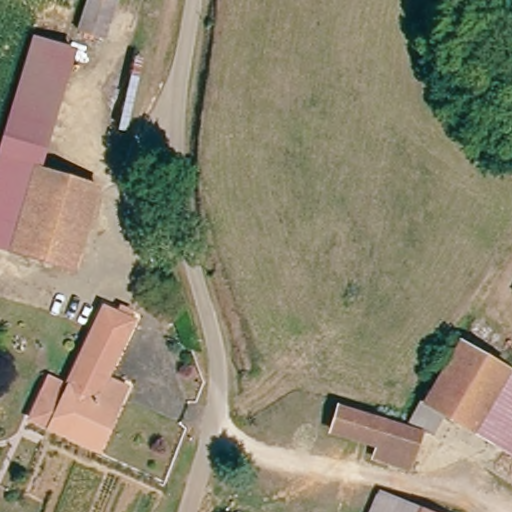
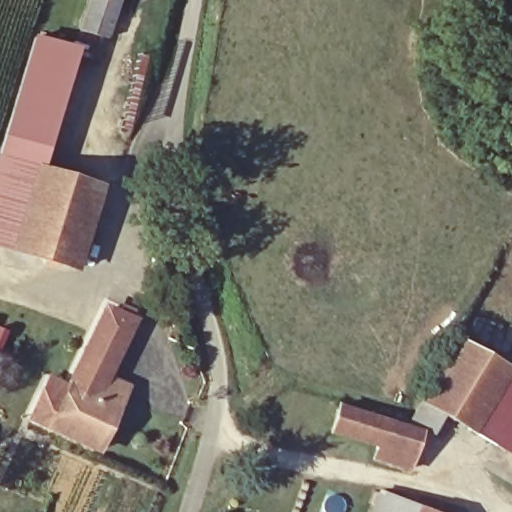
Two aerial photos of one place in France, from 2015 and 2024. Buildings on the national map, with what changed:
unchanged [(82,32),(90,0),(118,0),(108,39),(82,32)]
unchanged [(38,175),(0,166),(0,142),(26,44),(69,55),(38,175)]
unchanged [(38,175),(96,192),(75,269),(0,250),(0,166),(38,175)]
unchanged [(37,393),(46,374),(68,382),(97,309),(118,317),(121,308),(133,313),(130,323),(105,381),(124,389),(101,443),(98,451),(48,430),(26,421),(37,393)]
unchanged [(429,395),(461,343),(512,373),(512,447),(438,404),(428,422),(419,417),(413,413),(424,393),(429,395)]
unchanged [(422,439),(411,470),(374,457),(377,449),(332,433),(340,410),(422,439)]
unchanged [(384,496),(409,506),(422,512),(377,512),(384,496)]

